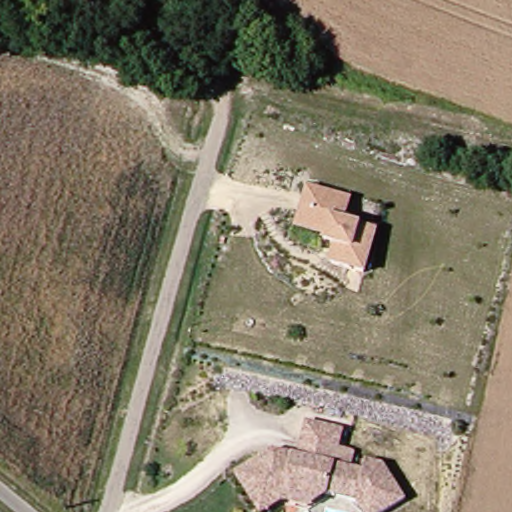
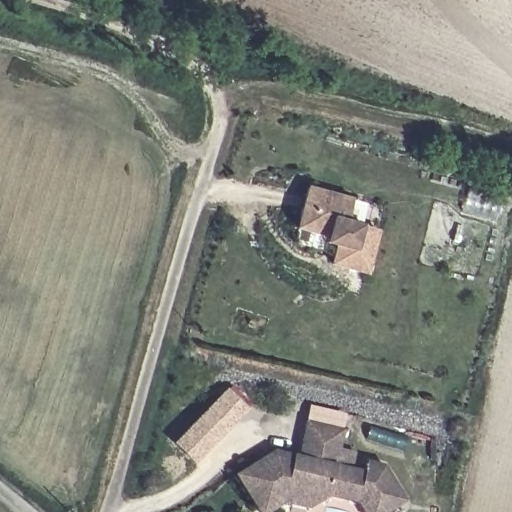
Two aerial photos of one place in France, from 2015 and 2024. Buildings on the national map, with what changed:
unchanged [(326,234),(296,226),(307,185),(350,197),(344,220),(376,229),(365,271),(330,262),(335,244),(325,241),(326,234)]
new [(191,462),(170,443),(227,389),(248,410),(191,462)]
unchanged [(309,505),(282,501),(264,512),(260,512),(256,506),(235,472),(263,455),(273,449),(292,453),(298,454),(306,420),(342,428),(338,446),(353,450),(350,467),(364,469),(366,459),(383,464),(405,499),(385,512),(366,512),(359,499),(327,492),(309,505)]

